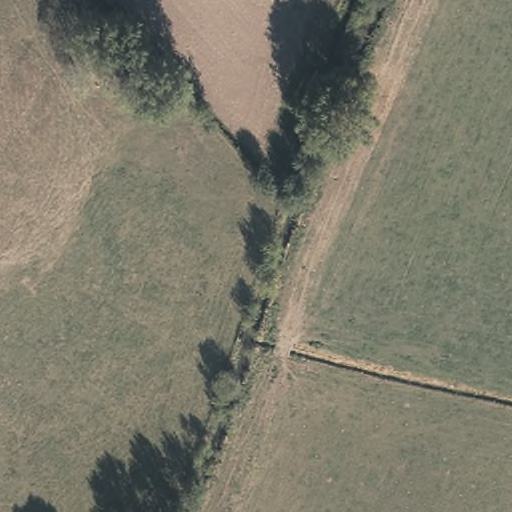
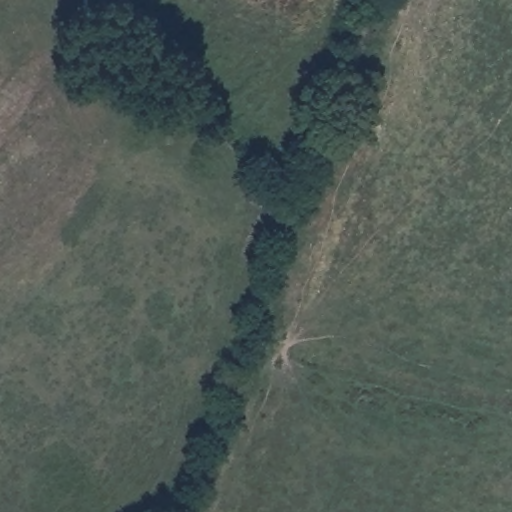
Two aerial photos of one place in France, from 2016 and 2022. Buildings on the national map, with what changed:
[]

